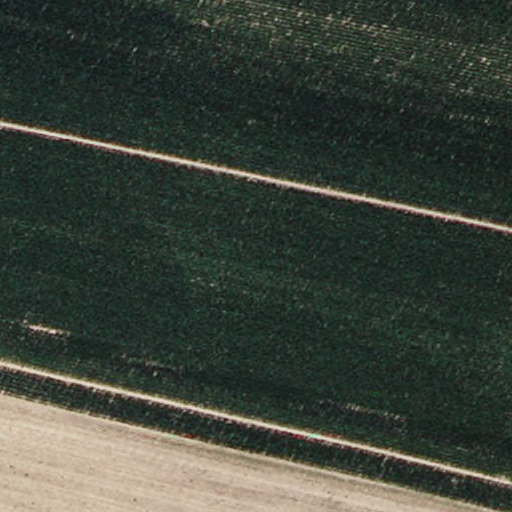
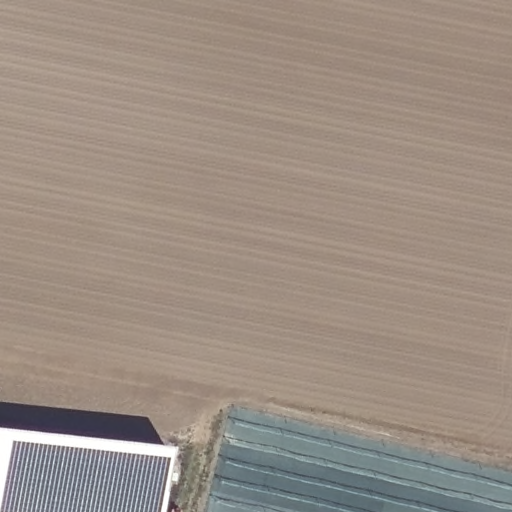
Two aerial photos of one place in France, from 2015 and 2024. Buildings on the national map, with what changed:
new [(0,430),(167,448),(160,512),(0,512),(0,430)]

